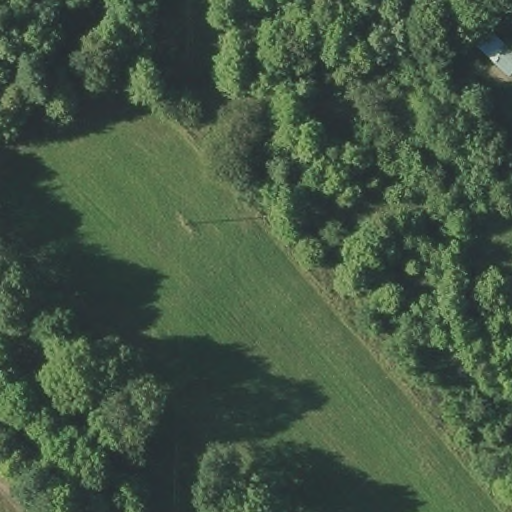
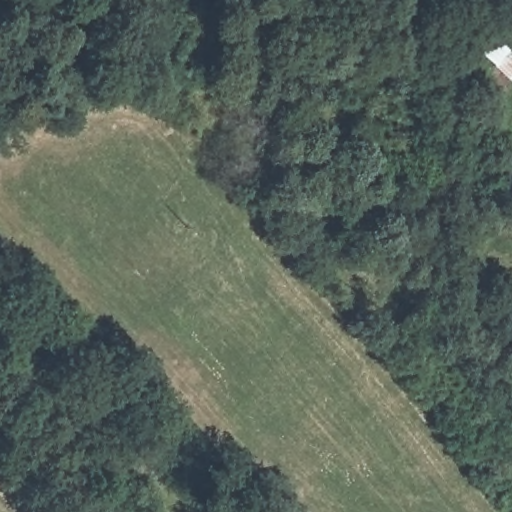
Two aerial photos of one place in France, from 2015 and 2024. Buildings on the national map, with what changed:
unchanged [(500,36),(512,48),(512,80),(508,84),(482,55),(500,36)]

